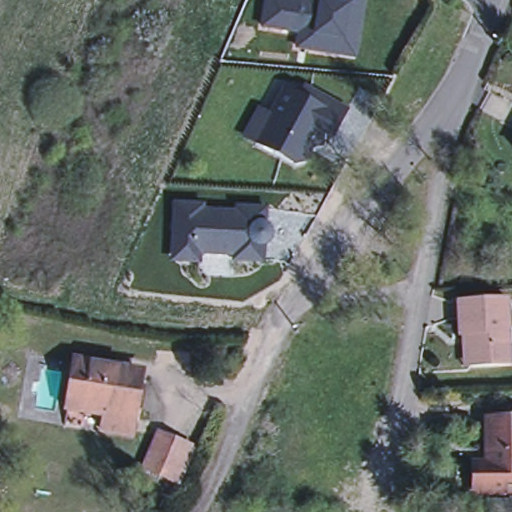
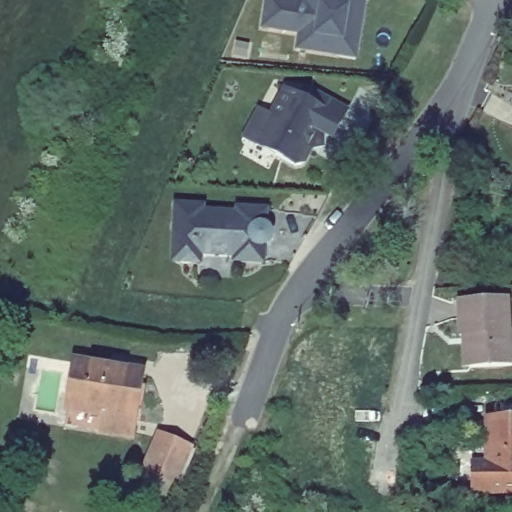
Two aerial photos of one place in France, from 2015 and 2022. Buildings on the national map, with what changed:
unchanged [(335,53),(297,48),(299,33),(262,26),(265,0),(288,0),(303,3),(304,0),(363,0),(354,56),(339,54),(335,53)]
unchanged [(257,112),(270,119),(285,89),(298,98),(303,88),(315,94),(282,159),(255,144),(243,138),(257,112)]
unchanged [(347,111),(332,138),(323,133),(320,140),(314,140),(302,164),(295,165),(282,159),(315,94),(347,111)]
unchanged [(173,202),(207,203),(209,209),(235,210),(235,204),(273,207),(273,231),(274,243),(261,255),(267,263),(252,275),(233,263),(238,255),(201,254),(201,265),(172,264),(173,202)]
unchanged [(456,339),(455,303),(506,301),(508,369),(468,370),(466,339),(456,339)]
unchanged [(120,430),(68,421),(71,404),(80,359),(112,364),(147,371),(138,417),(135,433),(120,430)]
unchanged [(487,419),(512,419),(512,493),(482,493),(472,493),(471,463),(482,464),(487,464),(487,419)]
unchanged [(187,449),(180,464),(172,484),(157,477),(142,471),(157,436),(172,442),(179,445),(187,449)]

